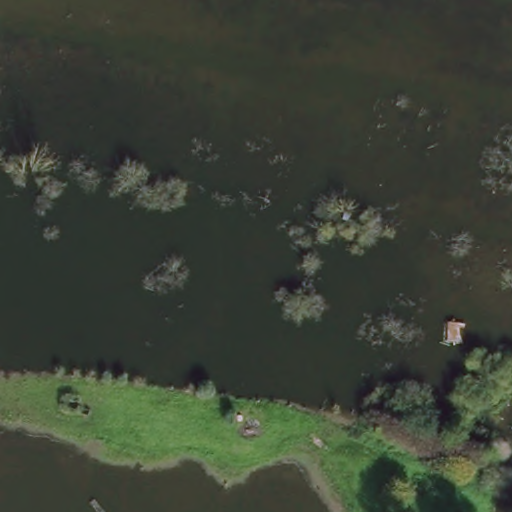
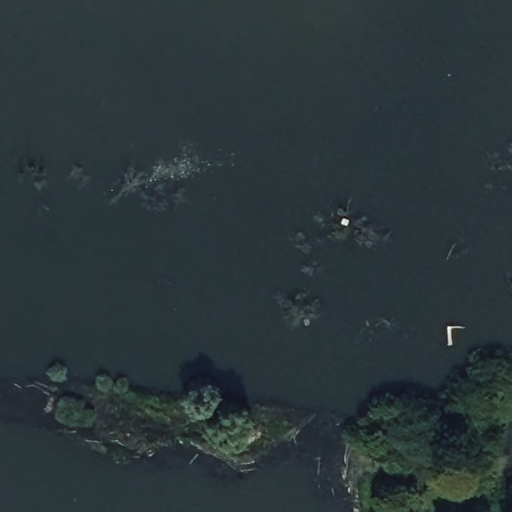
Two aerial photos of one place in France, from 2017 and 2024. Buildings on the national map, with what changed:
unchanged [(457,350),(440,345),(443,330),(461,334),(457,350)]

